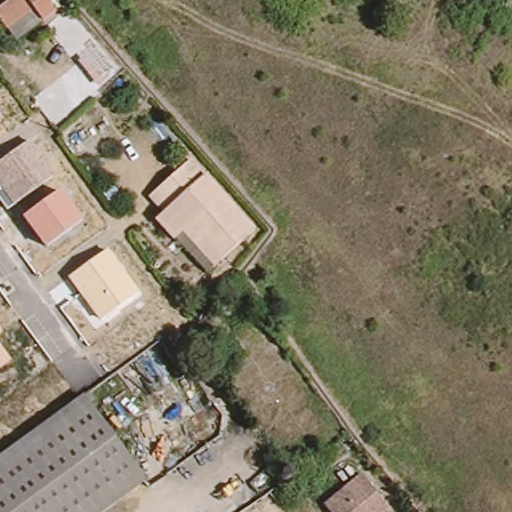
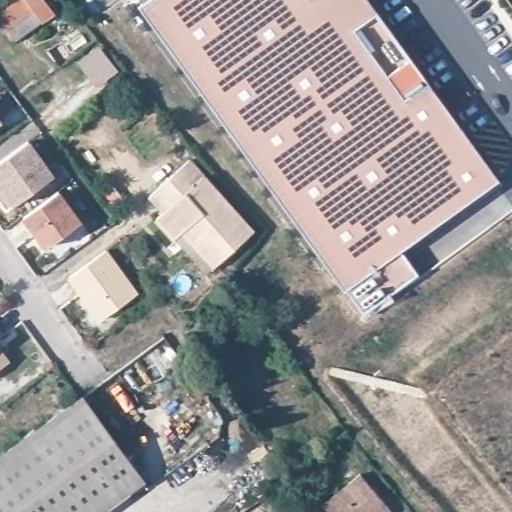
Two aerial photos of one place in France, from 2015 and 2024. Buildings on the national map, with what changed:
unchanged [(8,0),(44,0),(54,14),(37,28),(27,12),(0,33),(0,7),(8,0)]
new [(400,251),(417,274),(365,312),(347,288),(344,290),(139,7),(149,0),(369,0),(499,180),(400,251)]
new [(101,43),(123,69),(103,86),(81,61),(101,43)]
unchanged [(4,120),(0,122),(0,116),(4,120)]
unchanged [(58,173),(8,212),(0,201),(0,188),(1,187),(0,186),(0,164),(31,140),(58,173)]
unchanged [(176,235),(168,242),(152,222),(161,213),(146,195),(184,164),(247,237),(218,262),(207,271),(176,235)]
unchanged [(86,221),(46,251),(23,219),(62,189),(86,221)]
unchanged [(141,292),(100,323),(68,277),(108,249),(141,292)]
unchanged [(6,334),(0,338),(0,325),(6,334)]
unchanged [(13,361),(0,371),(0,342),(13,361)]
unchanged [(79,404),(136,486),(98,512),(0,512),(0,457),(79,404)]
unchanged [(360,472),(391,508),(386,512),(331,512),(323,503),(360,472)]

